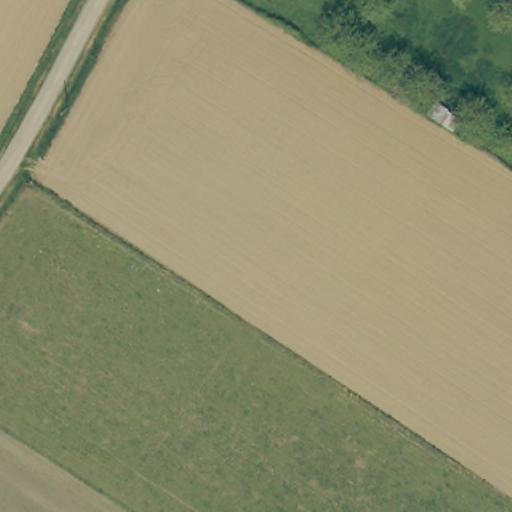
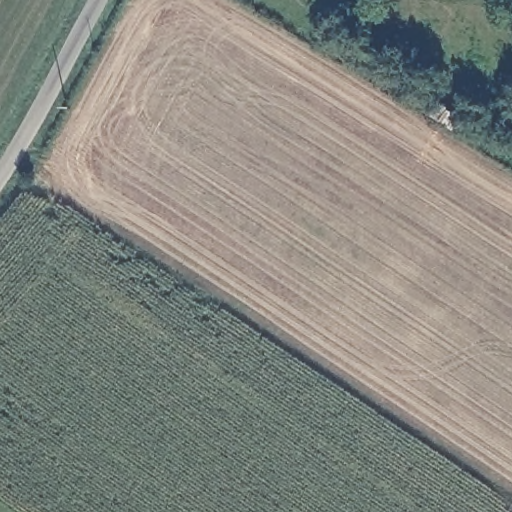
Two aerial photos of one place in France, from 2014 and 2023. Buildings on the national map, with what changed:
[]

